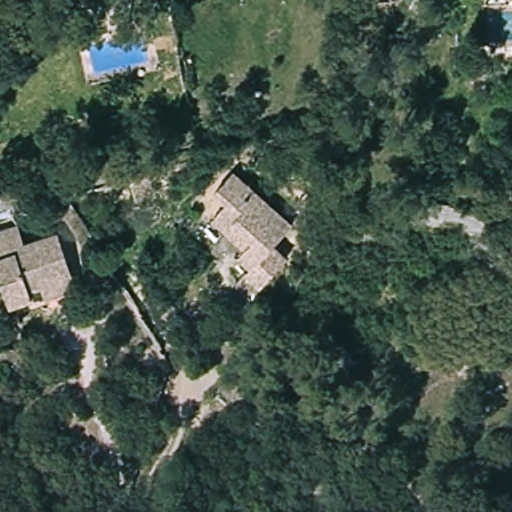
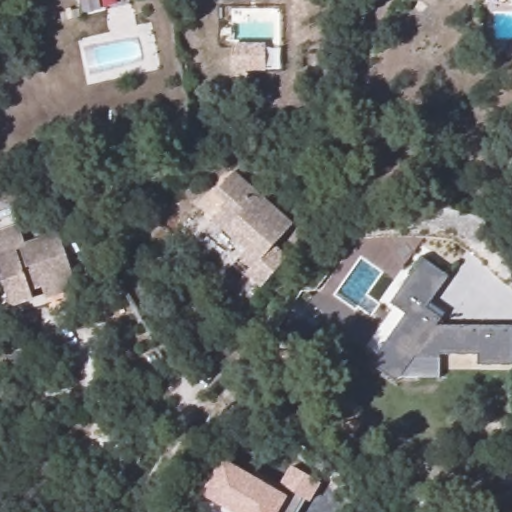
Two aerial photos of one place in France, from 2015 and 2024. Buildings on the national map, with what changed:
unchanged [(296,223),(276,245),(290,258),(263,286),(248,274),(254,268),(243,257),(253,245),(237,230),(233,233),(216,219),(229,204),(216,193),(238,171),(296,223)]
unchanged [(44,288),(33,292),(35,298),(13,308),(0,276),(0,231),(19,223),(28,246),(58,234),(75,275),(80,288),(49,302),(44,288)]
new [(448,276),(429,304),(444,315),(436,326),(512,326),(512,366),(477,366),(477,355),(439,355),(439,358),(413,358),(396,383),(369,365),(405,314),(389,303),(421,258),(448,276)]
new [(286,489),(279,485),(291,466),(321,483),(310,502),(305,499),(298,512),(228,512),(200,495),(221,458),(284,496),(286,489)]

